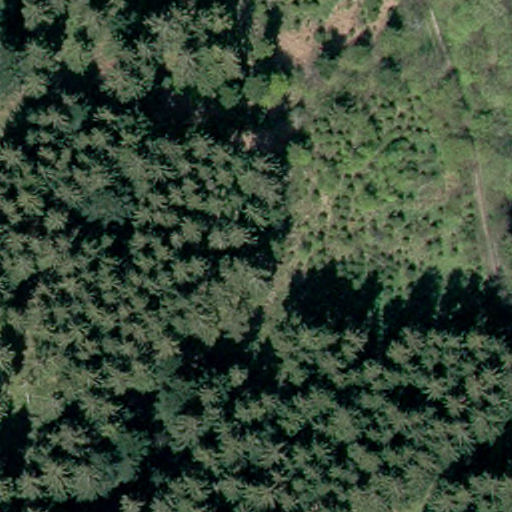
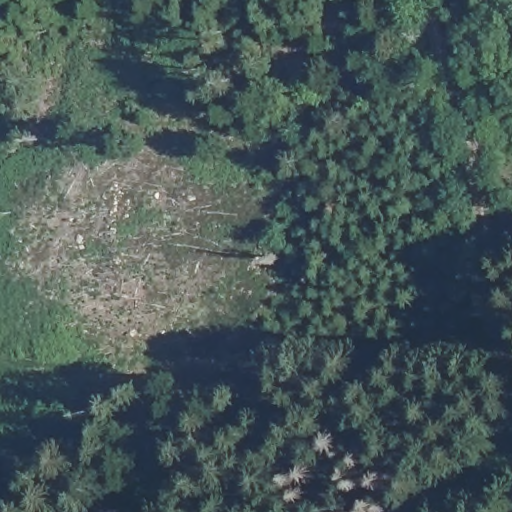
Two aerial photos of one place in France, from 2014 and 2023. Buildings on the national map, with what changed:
unchanged [(498,190),(512,188),(512,234),(505,234),(498,190)]

